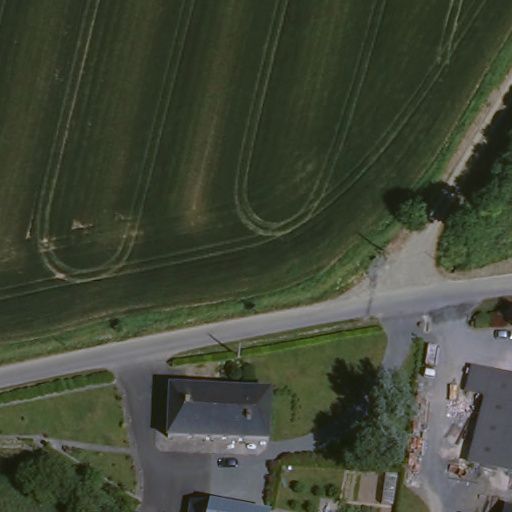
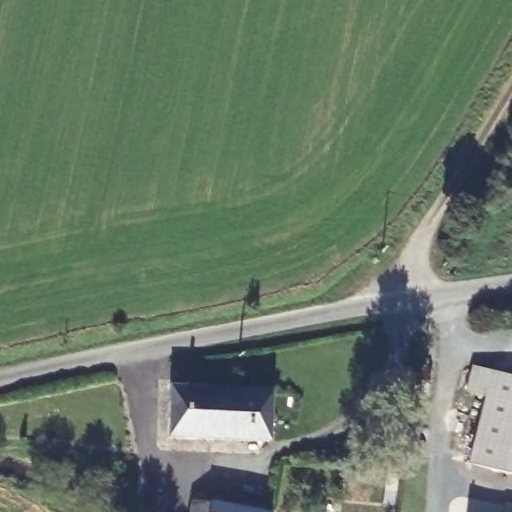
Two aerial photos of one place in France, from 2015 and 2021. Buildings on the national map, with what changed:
unchanged [(489,392),(468,387),(472,366),(512,373),(512,462),(511,467),(473,460),(489,392)]
unchanged [(166,432),(168,380),(220,383),(220,388),(220,408),(212,408),(211,436),(166,432)]
unchanged [(271,440),(211,436),(212,408),(220,408),(220,388),(220,383),(237,383),(246,384),(273,386),(273,398),(271,440)]
unchanged [(512,462),(512,467),(511,467),(512,462)]
unchanged [(503,471),(512,473),(512,494),(500,492),(503,471)]
unchanged [(268,507),(268,512),(191,512),(192,497),(206,499),(210,499),(215,500),(268,507)]
unchanged [(512,502),(512,512),(503,512),(505,502),(512,502)]

